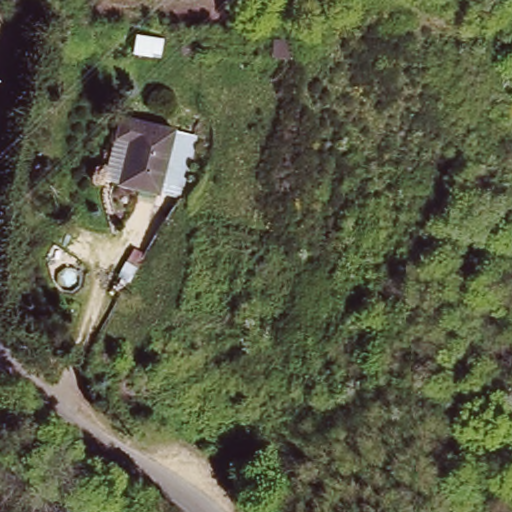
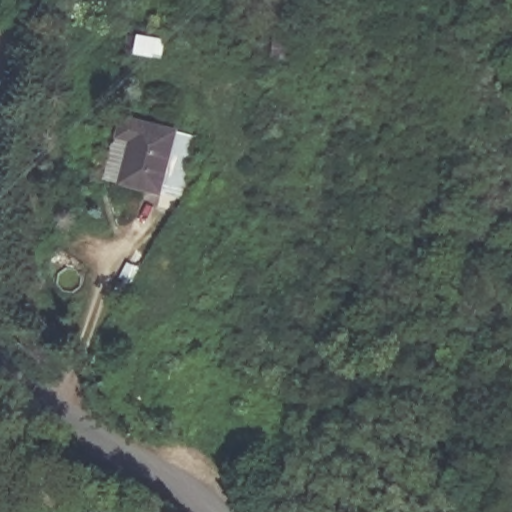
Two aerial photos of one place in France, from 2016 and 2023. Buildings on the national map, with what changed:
unchanged [(168,194),(101,178),(112,137),(97,134),(101,118),(183,133),(168,194)]

